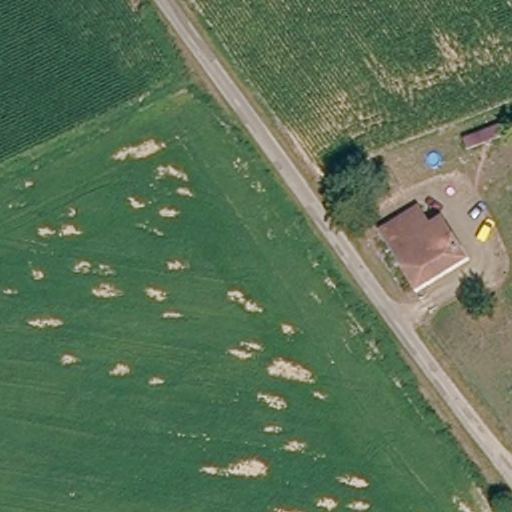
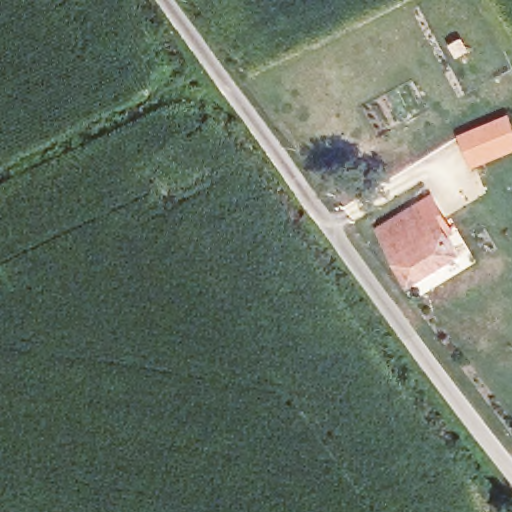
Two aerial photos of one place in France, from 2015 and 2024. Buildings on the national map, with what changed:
new [(474,169),(460,135),(512,114),(512,154),(474,169)]
unchanged [(377,231),(418,204),(425,220),(439,214),(466,265),(420,296),(377,231)]

